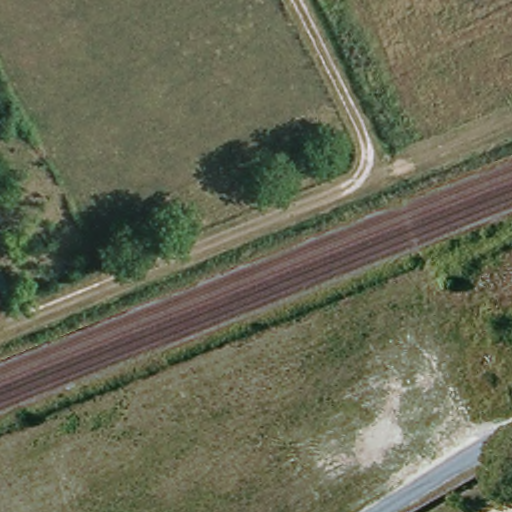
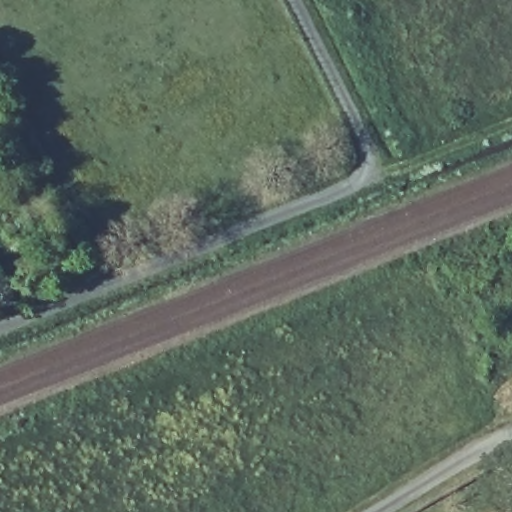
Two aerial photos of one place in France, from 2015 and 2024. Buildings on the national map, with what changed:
[]

